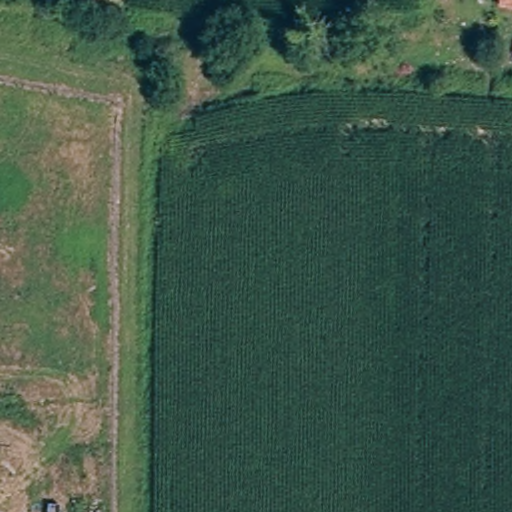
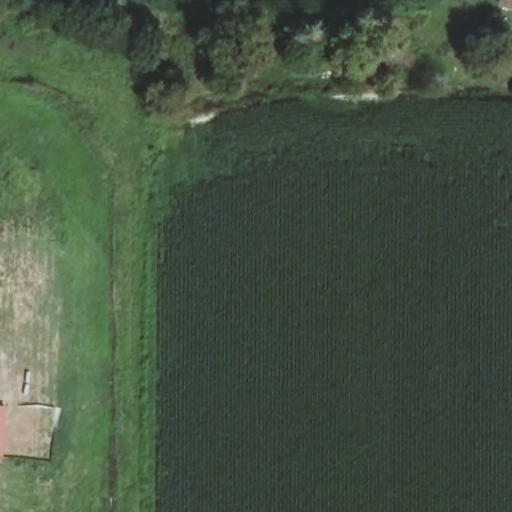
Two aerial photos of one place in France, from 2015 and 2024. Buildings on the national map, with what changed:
new [(2,457),(0,457),(0,404),(7,405),(2,457)]

